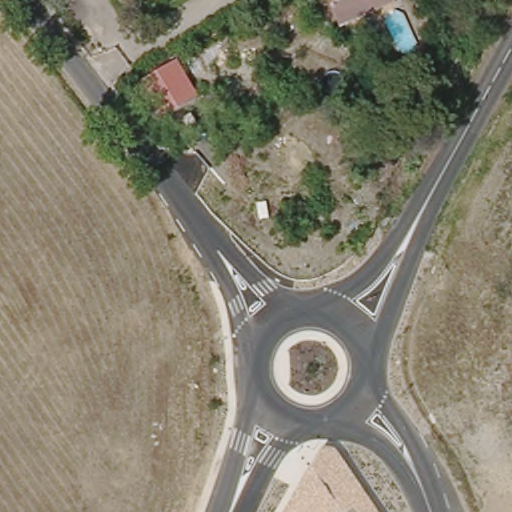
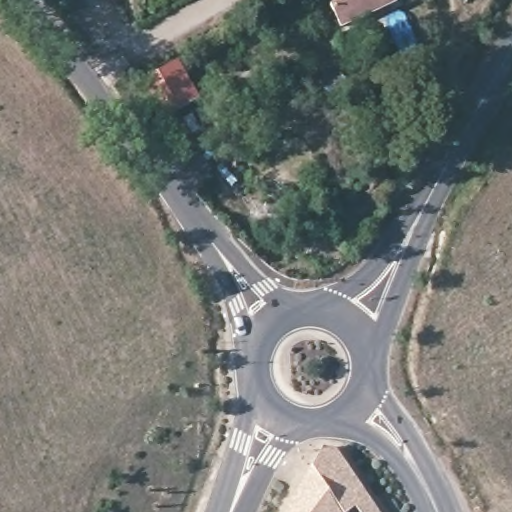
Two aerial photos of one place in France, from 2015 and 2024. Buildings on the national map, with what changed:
unchanged [(332,6),(339,2),(338,0),(393,0),(394,5),(340,27),(332,6)]
unchanged [(140,73),(179,51),(200,89),(162,112),(140,73)]
unchanged [(348,512),(284,512),(318,450),(332,450),(375,512),(356,512),(353,508),(348,512)]

